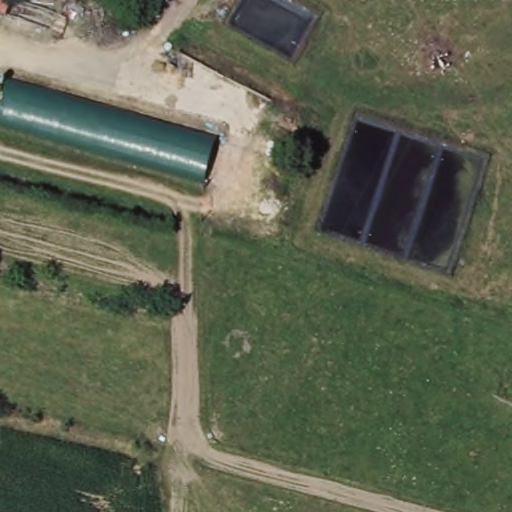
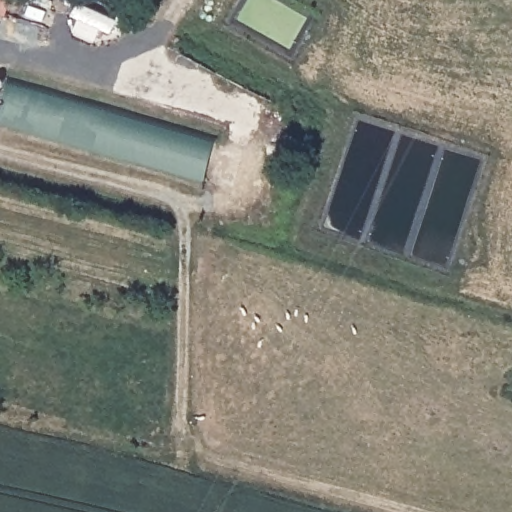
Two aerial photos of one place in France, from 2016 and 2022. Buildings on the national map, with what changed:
unchanged [(0,117),(10,80),(104,105),(218,137),(205,180),(90,148),(0,124),(0,117)]

